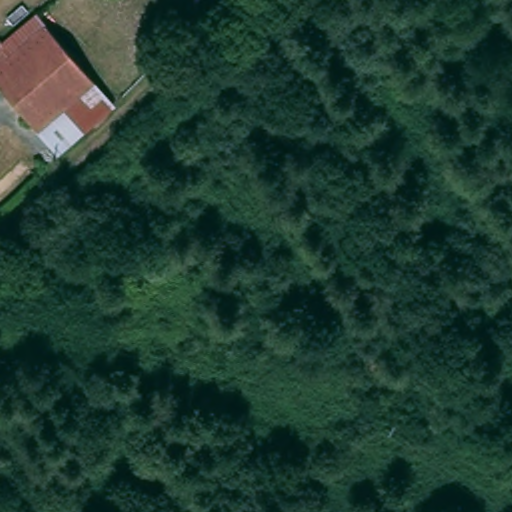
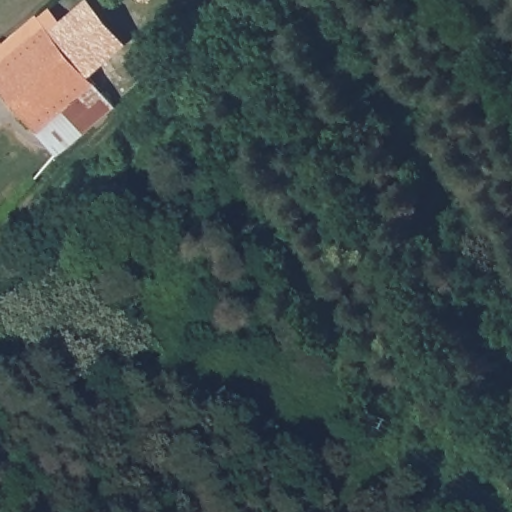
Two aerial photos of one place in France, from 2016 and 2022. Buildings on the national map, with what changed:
new [(44,15),(50,9),(58,19),(81,0),(91,0),(125,41),(92,72),(44,15)]
unchanged [(11,45),(44,15),(117,100),(63,151),(0,77),(0,41),(4,38),(11,45)]

